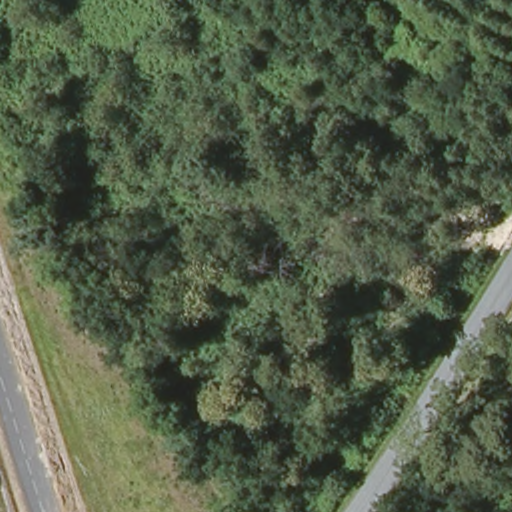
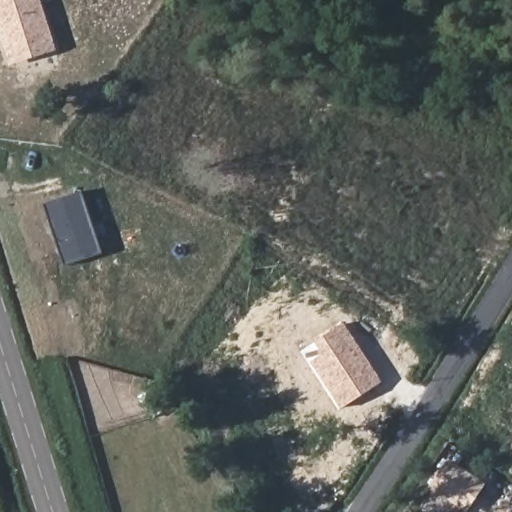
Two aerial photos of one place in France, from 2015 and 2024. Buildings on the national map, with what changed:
new [(41,0),(57,51),(8,66),(0,39),(0,0),(41,0)]
new [(100,252),(64,264),(44,205),(80,193),(100,252)]
new [(312,362),(322,354),(314,342),(341,325),(380,384),(341,408),(312,362)]
new [(449,459),(486,484),(467,512),(464,512),(428,488),(449,459)]

